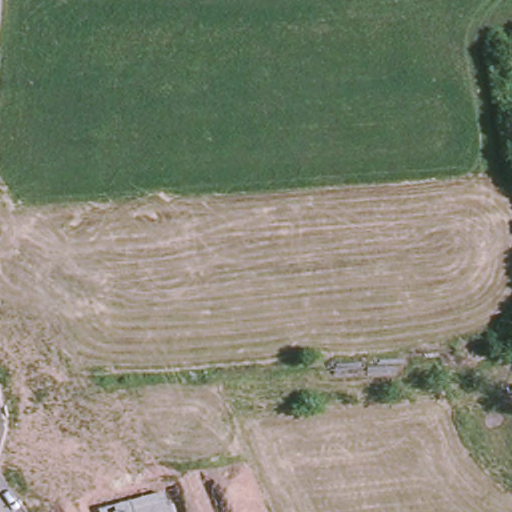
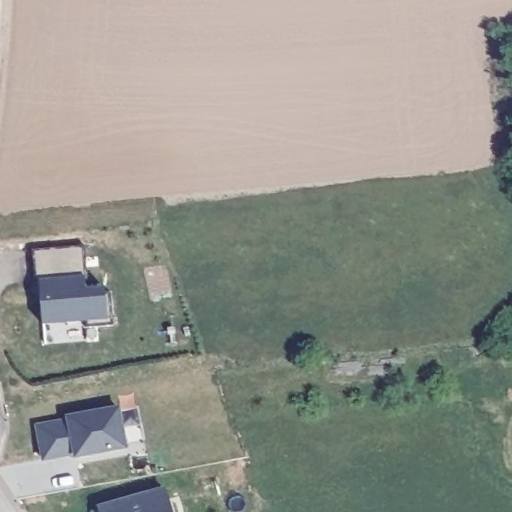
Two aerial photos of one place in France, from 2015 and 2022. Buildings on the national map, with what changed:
new [(105,293),(111,292),(113,326),(86,328),(85,322),(42,325),(40,294),(43,293),(42,283),(35,285),(31,251),(85,246),(87,280),(85,280),(85,290),(105,288),(105,293)]
new [(76,455),(75,452),(44,457),(38,427),(70,421),(69,417),(117,408),(125,447),(105,450),(96,452),(76,455)]
new [(170,512),(100,512),(100,509),(163,491),(167,505),(170,512)]
new [(167,505),(174,503),(176,512),(170,512),(167,505)]

